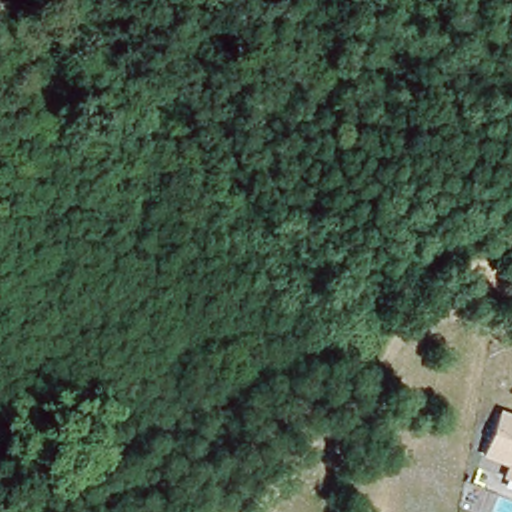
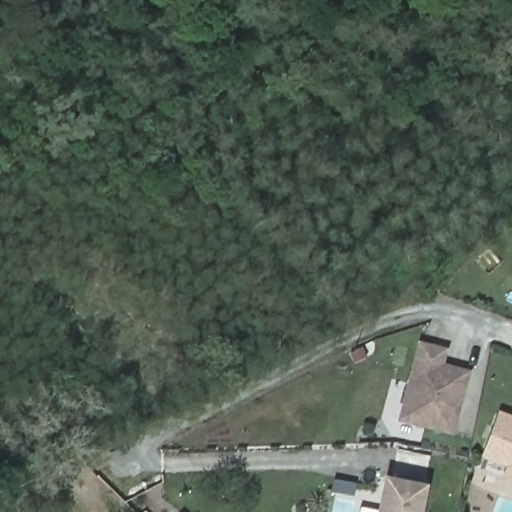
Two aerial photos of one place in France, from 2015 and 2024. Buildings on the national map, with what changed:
new [(397,419),(419,340),(447,348),(443,363),(470,370),(454,434),(397,419)]
unchanged [(512,484),(501,480),(506,466),(481,456),(498,409),(512,415),(512,484)]
new [(359,507),(376,510),(383,475),(428,482),(422,512),(358,512),(359,507)]

